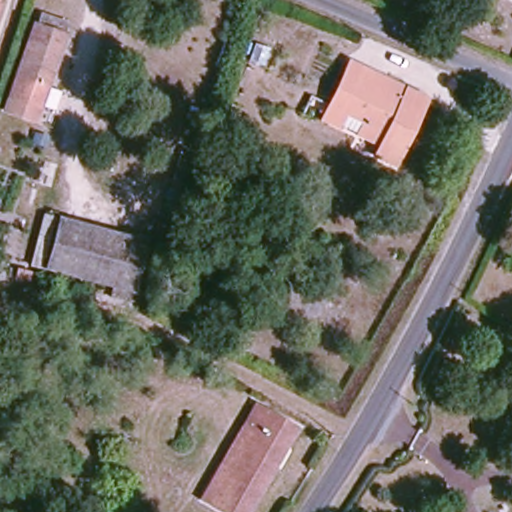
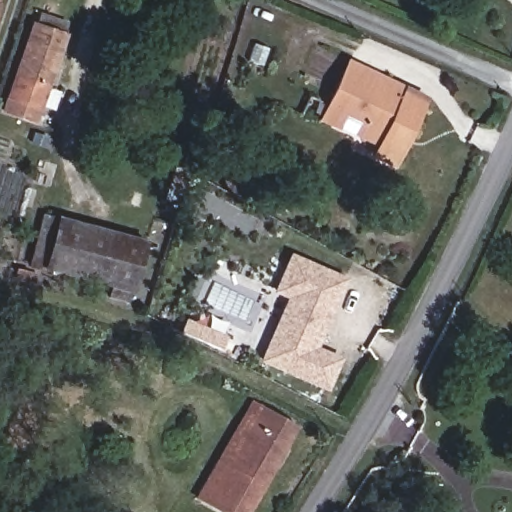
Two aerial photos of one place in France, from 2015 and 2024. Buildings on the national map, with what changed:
unchanged [(0,0),(4,0),(0,14),(0,0)]
unchanged [(33,121),(16,115),(20,105),(10,101),(36,28),(62,36),(33,121)]
unchanged [(328,113),(334,99),(352,60),(428,95),(400,157),(380,148),(384,136),(363,127),(369,115),(347,105),(343,121),(328,113)]
unchanged [(141,291),(33,260),(43,210),(156,239),(141,291)]
new [(288,297),(275,291),(291,258),(342,282),(325,318),(319,331),(311,349),(335,361),(322,388),(282,370),(260,360),(266,346),(288,297)]
unchanged [(261,448),(272,429),(251,418),(262,399),(300,421),(277,460),(261,448)]
unchanged [(200,498),(214,477),(226,458),(243,431),(251,418),(272,429),(261,448),(277,460),(265,483),(253,500),(245,512),(223,512),(200,498)]

